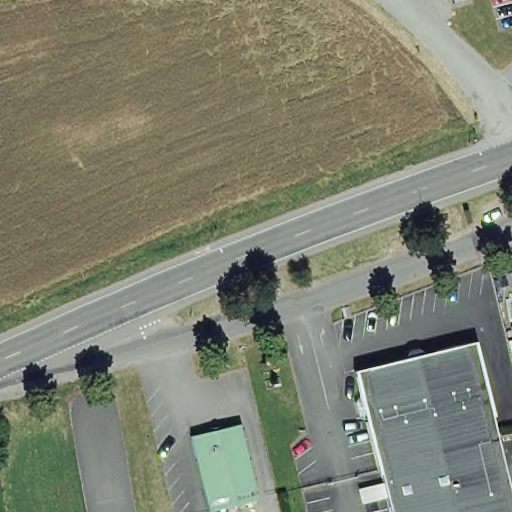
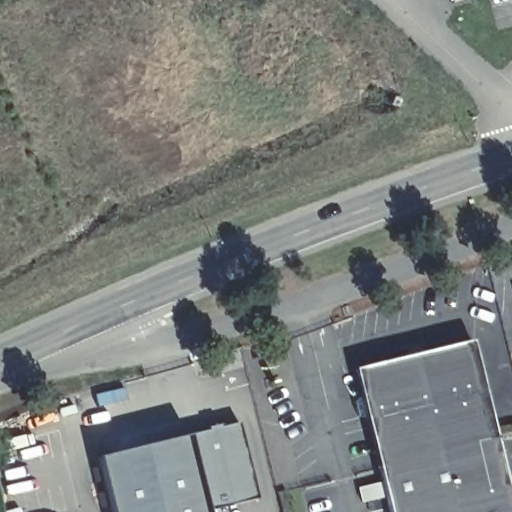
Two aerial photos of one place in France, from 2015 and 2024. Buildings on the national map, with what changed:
unchanged [(470,340),(511,512),(388,512),(353,369),(470,340)]
unchanged [(203,507),(185,430),(205,425),(204,420),(217,418),(218,422),(237,419),(256,496),(252,497),(203,507)]
new [(205,512),(114,512),(101,458),(188,440),(203,507),(205,512)]

